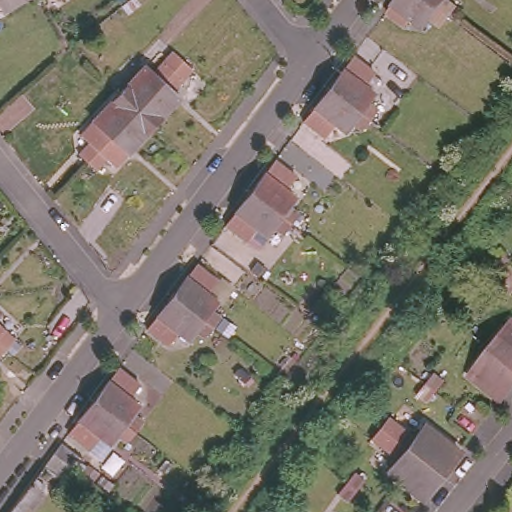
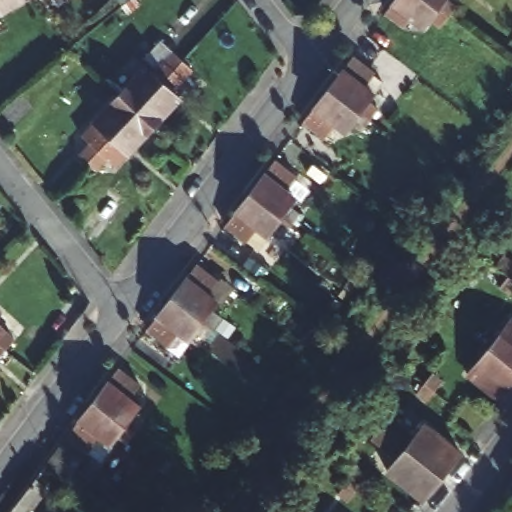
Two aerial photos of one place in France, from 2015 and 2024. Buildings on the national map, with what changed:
unchanged [(13,0),(14,0),(13,1),(13,0)]
unchanged [(442,19),(434,29),(423,21),(418,30),(405,20),(399,28),(380,14),(387,6),(391,0),(418,0),(432,11),(442,19)]
unchanged [(442,19),(432,11),(418,0),(440,0),(450,8),(442,19)]
unchanged [(90,136),(103,124),(95,116),(119,88),(145,59),(155,68),(167,55),(174,61),(183,70),(171,83),(180,91),(155,120),(128,148),(120,140),(108,153),(98,144),(90,136)]
unchanged [(342,66),(348,58),(367,73),(361,81),(373,90),(368,98),(378,106),(370,116),(359,109),(327,86),(342,66)]
unchanged [(359,109),(370,116),(362,128),(352,120),(345,128),(332,119),(327,126),(307,112),(313,105),(327,86),(359,109)]
unchanged [(268,171),(278,158),(300,174),(290,188),(300,195),(293,203),(303,211),(296,221),(285,214),(254,190),(268,171)]
unchanged [(285,214),(296,221),(287,232),(277,225),(272,233),(262,226),(252,239),(230,223),(240,209),(243,204),(254,190),(285,214)]
unchanged [(180,282),(185,275),(195,262),(217,278),(207,292),(217,299),(210,307),(220,315),(212,326),(201,318),(170,295),(180,282)]
unchanged [(510,274),(512,270),(512,286),(512,287),(505,296),(495,290),(497,287),(503,281),(510,274)]
unchanged [(201,318),(212,326),(203,337),(193,329),(187,337),(177,331),(167,344),(145,327),(156,314),(167,298),(170,295),(201,318)]
unchanged [(512,358),(490,342),(512,315),(512,358)]
unchanged [(19,341),(10,351),(0,342),(0,323),(19,341)]
unchanged [(10,351),(0,361),(0,342),(10,351)]
unchanged [(490,342),(512,358),(512,384),(496,404),(482,388),(467,371),(477,359),(490,342)]
unchanged [(102,393),(112,379),(122,366),(143,382),(133,396),(143,403),(137,411),(147,419),(138,430),(128,423),(97,399),(102,393)]
unchanged [(417,394),(424,383),(432,373),(442,381),(435,391),(426,402),(417,394)]
unchanged [(128,423),(138,430),(130,441),(120,434),(114,441),(105,435),(94,448),(72,432),(83,417),(97,399),(128,423)]
unchanged [(396,462),(373,444),(382,432),(392,419),(415,437),(425,425),(460,453),(441,477),(422,501),(387,474),(396,462)]
unchanged [(75,473),(65,487),(42,470),(49,461),(52,456),(67,468),(75,473)]
unchanged [(337,496),(345,485),(353,475),(362,483),(355,492),(345,503),(337,496)]

